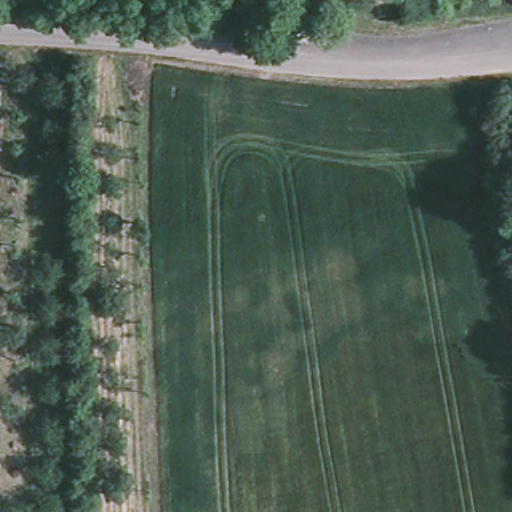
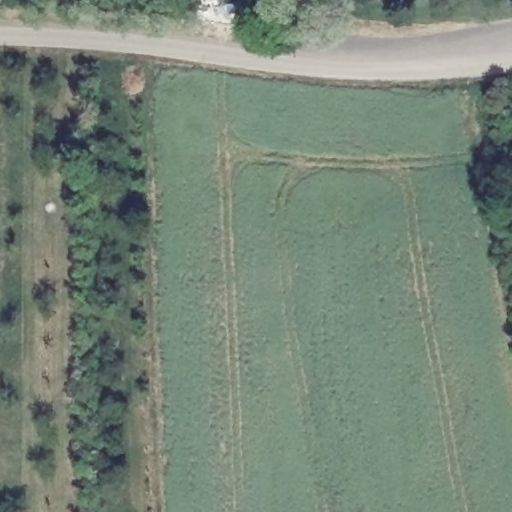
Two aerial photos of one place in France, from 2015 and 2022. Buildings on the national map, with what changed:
[]

